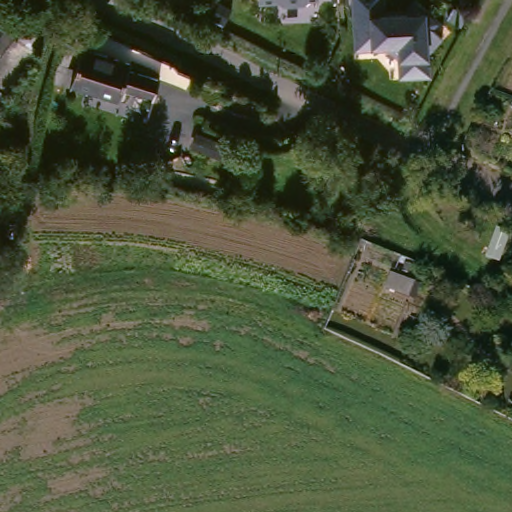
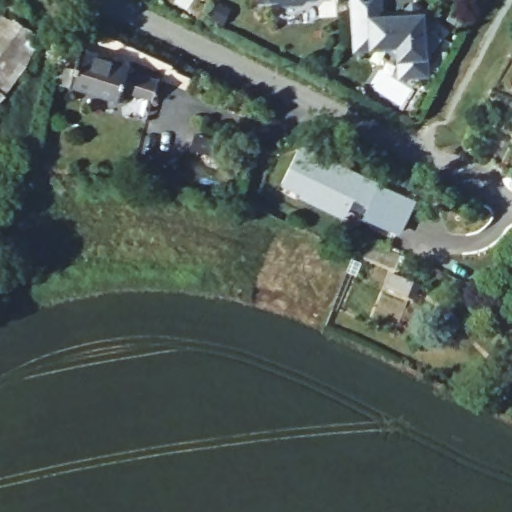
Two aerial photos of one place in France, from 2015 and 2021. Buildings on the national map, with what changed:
unchanged [(285,2),(282,0),(307,0),(285,2)]
unchanged [(400,10),(409,0),(410,0),(431,20),(427,25),(438,35),(422,51),(423,70),(397,71),(396,50),(386,40),(371,41),(371,44),(352,45),(351,13),(400,10)]
unchanged [(46,34),(0,88),(0,46),(24,15),(46,34)]
unchanged [(141,56),(139,64),(171,73),(165,94),(132,84),(129,94),(62,74),(64,65),(84,71),(92,42),(141,56)]
new [(305,149),(415,202),(401,231),(349,206),(345,215),(305,196),(306,193),(288,184),(305,149)]
unchanged [(396,271),(420,281),(414,295),(390,285),(396,271)]

